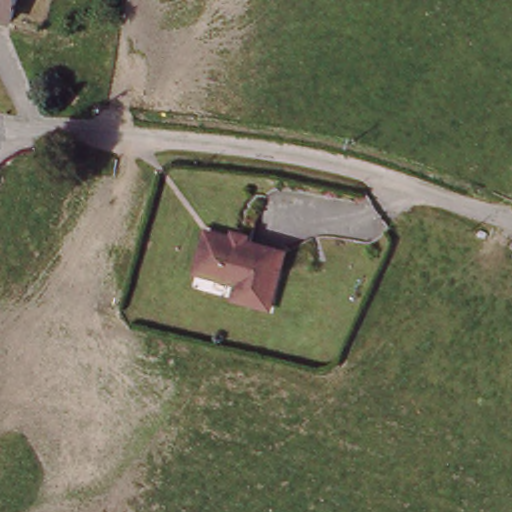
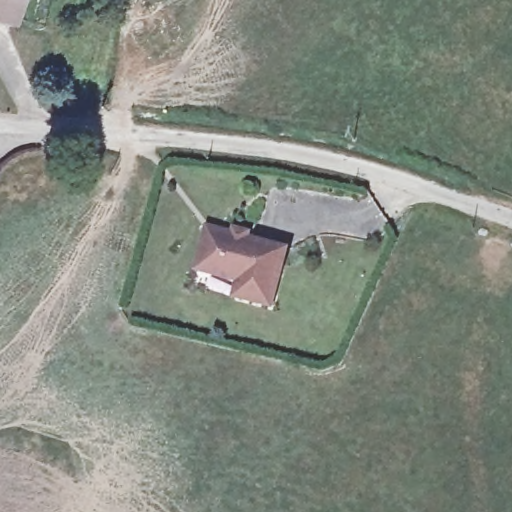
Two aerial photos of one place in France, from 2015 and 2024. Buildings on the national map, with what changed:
unchanged [(0,16),(0,0),(17,0),(11,19),(0,16)]
unchanged [(233,293),(236,278),(196,267),(208,225),(284,247),(269,302),(233,293)]

